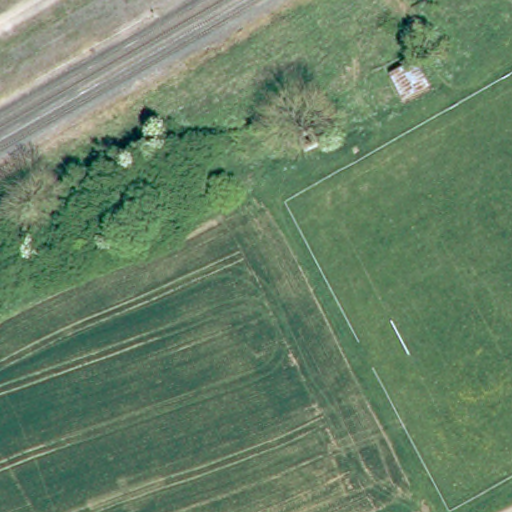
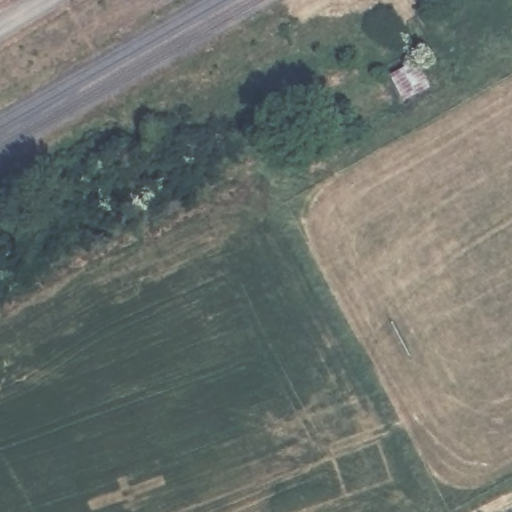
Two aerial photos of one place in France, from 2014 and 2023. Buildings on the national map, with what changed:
unchanged [(436,88),(408,102),(394,77),(423,60),(436,88)]

